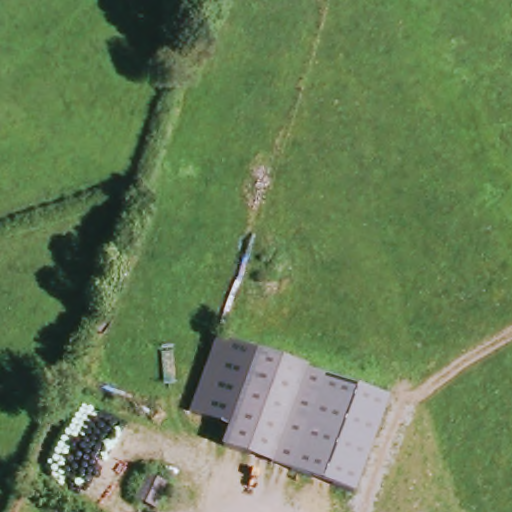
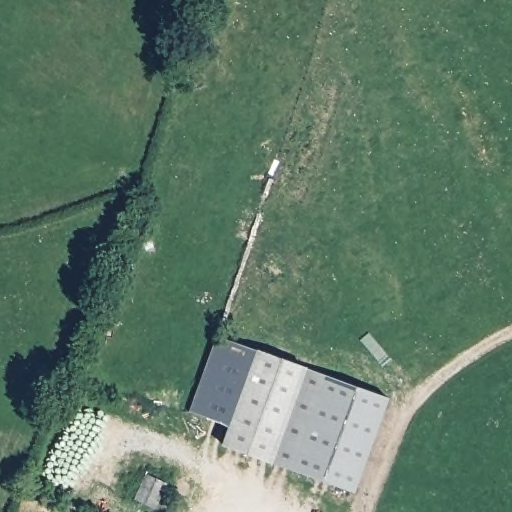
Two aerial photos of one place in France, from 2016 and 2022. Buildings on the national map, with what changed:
unchanged [(279,466),(229,448),(263,354),(312,372),(279,466)]
unchanged [(394,402),(359,496),(279,466),(312,372),(394,402)]
unchanged [(156,512),(144,512),(134,507),(148,483),(166,494),(156,512)]

